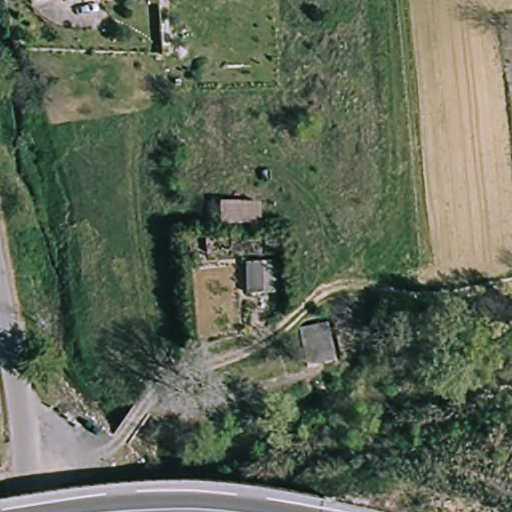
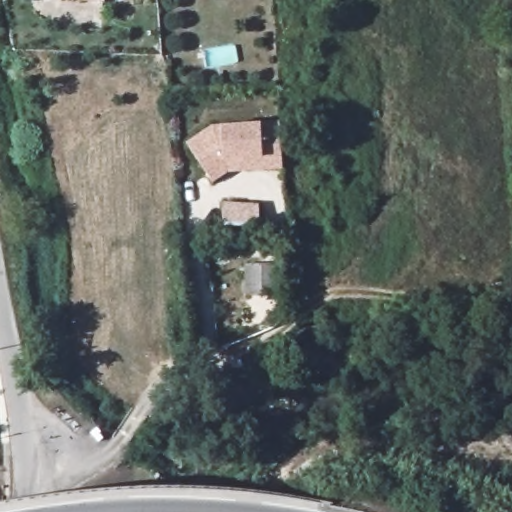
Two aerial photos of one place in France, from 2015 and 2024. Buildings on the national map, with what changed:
new [(283,170),(229,173),(215,182),(187,144),(213,126),(221,125),(261,123),(278,121),(283,170)]
unchanged [(243,266),(276,264),(279,295),(246,297),(243,266)]
unchanged [(323,330),(334,373),(306,380),(294,338),(323,330)]

